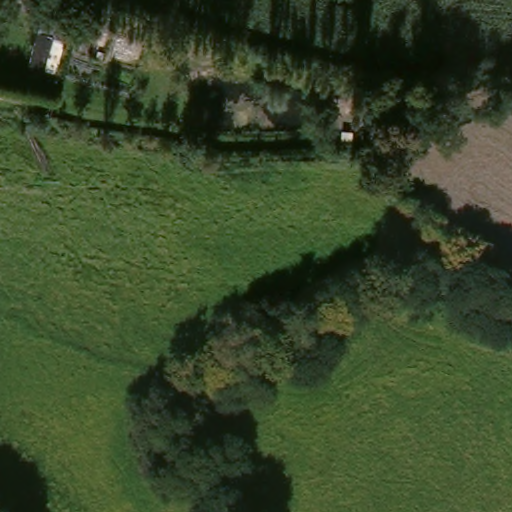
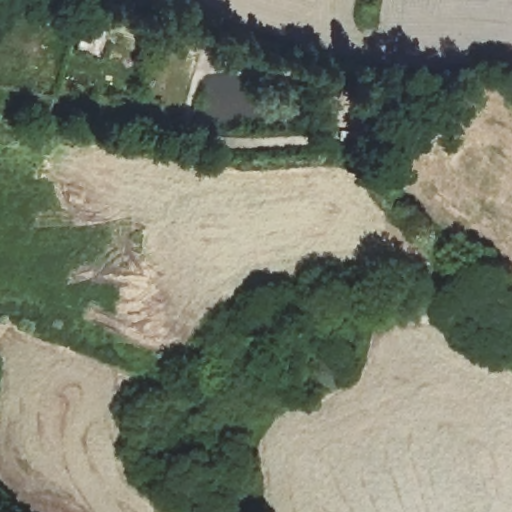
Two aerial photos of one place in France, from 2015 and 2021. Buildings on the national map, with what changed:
unchanged [(69,16),(58,79),(29,73),(39,10),(69,16)]

